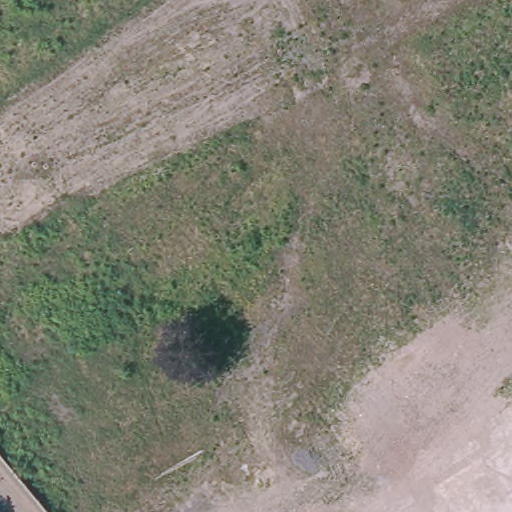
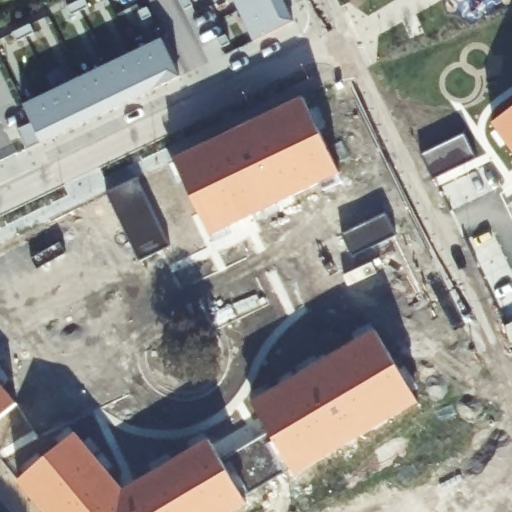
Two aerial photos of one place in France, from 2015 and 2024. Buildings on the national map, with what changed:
new [(252,40),(233,0),(281,0),(294,25),(252,40)]
new [(161,39),(180,80),(40,148),(22,109),(161,39)]
new [(175,159),(302,98),(340,174),(212,237),(175,159)]
new [(512,112),(512,147),(496,124),(512,112)]
new [(474,158),(435,178),(423,154),(465,134),(474,158)]
new [(107,193),(138,178),(171,246),(140,262),(107,193)]
new [(397,234),(355,256),(343,234),(385,214),(397,234)]
new [(125,489),(209,439),(222,461),(271,432),(251,399),(376,331),(420,403),(296,476),(291,467),(244,497),(248,504),(235,512),(43,512),(17,482),(77,432),(125,489)]
new [(17,404),(0,419),(0,384),(17,404)]
demolished [(465,482),(461,476),(445,454),(464,442),(480,464),(483,469),(465,482)]

